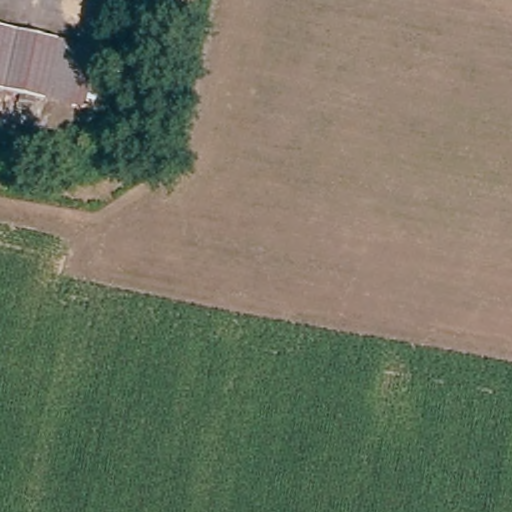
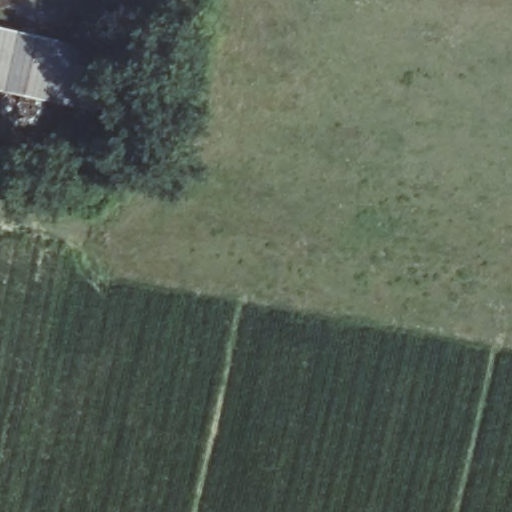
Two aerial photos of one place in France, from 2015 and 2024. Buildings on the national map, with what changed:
unchanged [(0,29),(24,34),(11,92),(0,90),(0,29)]
unchanged [(24,34),(62,42),(50,101),(11,92),(24,34)]
unchanged [(102,51),(90,109),(50,101),(62,42),(102,51)]

